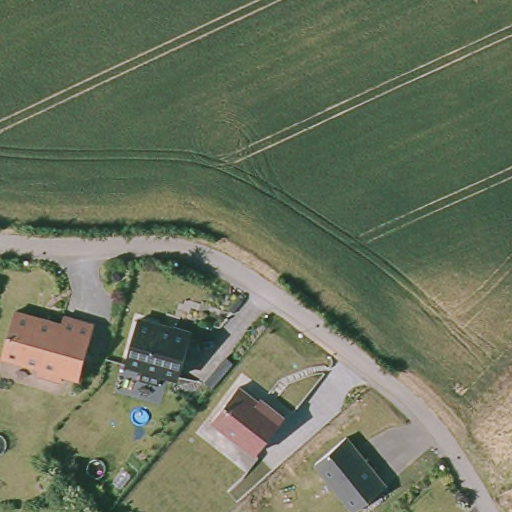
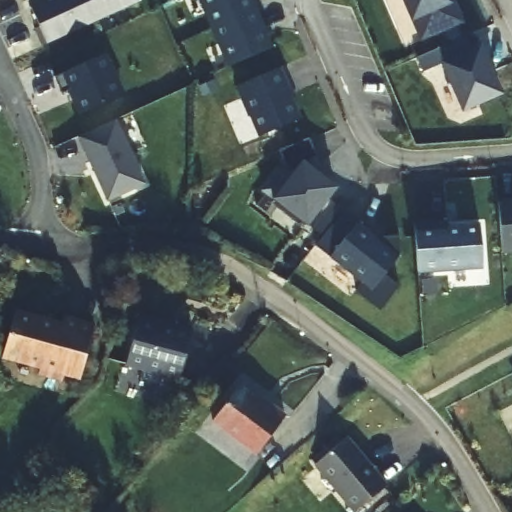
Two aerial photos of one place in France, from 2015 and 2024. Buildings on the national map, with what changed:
new [(46,44),(30,6),(45,0),(138,0),(139,2),(46,44)]
new [(215,28),(203,0),(253,0),(257,10),(215,28)]
new [(423,39),(407,0),(455,0),(464,21),(423,39)]
new [(274,48),(231,66),(215,28),(257,10),(274,48)]
new [(481,106),(480,103),(465,109),(445,63),(481,48),(489,64),(488,65),(492,75),(494,75),(503,96),(481,106)]
new [(106,54),(125,95),(82,114),(71,90),(63,94),(55,77),(106,54)]
new [(305,128),(268,143),(246,90),(283,76),(305,128)]
new [(89,149),(83,135),(116,120),(145,184),(110,200),(87,150),(89,149)]
new [(338,187),(306,228),(273,201),(290,175),(280,152),(311,138),(318,155),(306,161),(338,187)]
new [(500,202),(512,201),(512,252),(502,253),(500,202)]
new [(360,219),(357,223),(376,238),(400,236),(400,255),(385,275),(399,286),(380,310),(355,290),(362,280),(317,245),(345,209),(360,219)]
new [(475,228),(477,271),(420,272),(417,230),(475,228)]
unchanged [(61,377),(60,383),(36,377),(38,370),(1,359),(13,313),(41,321),(41,324),(60,329),(62,319),(93,328),(82,365),(78,381),(61,377)]
unchanged [(136,322),(170,331),(171,328),(190,334),(177,380),(160,375),(157,387),(137,382),(140,372),(123,368),(136,322)]
unchanged [(236,389),(255,403),(257,401),(282,419),(253,456),(210,423),(236,389)]
unchanged [(343,440),(382,488),(354,512),(348,512),(312,467),(343,440)]

